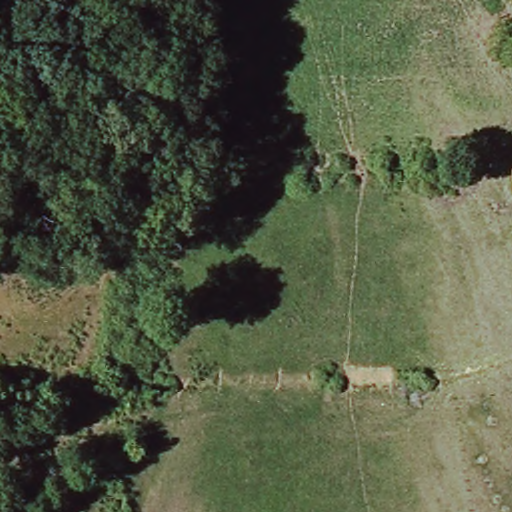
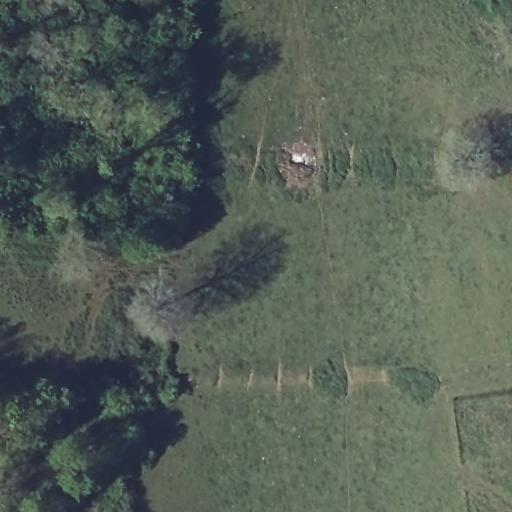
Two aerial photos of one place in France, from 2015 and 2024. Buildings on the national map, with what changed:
unchanged [(507,154),(512,154),(512,168),(507,169),(507,154)]

